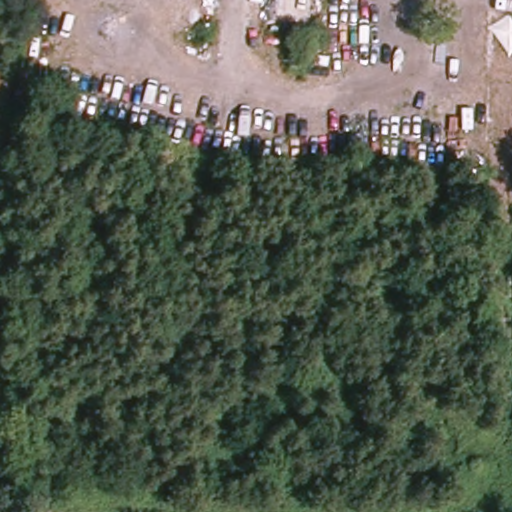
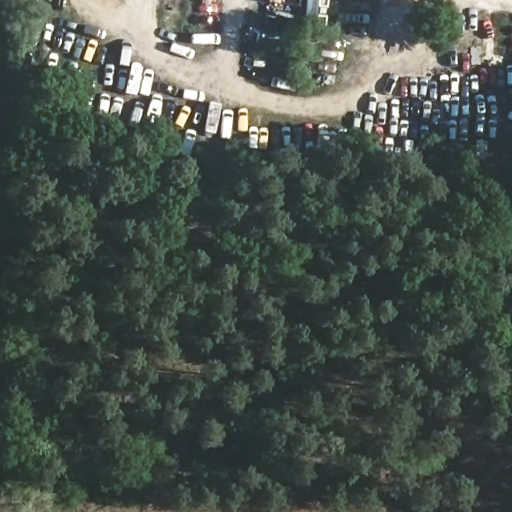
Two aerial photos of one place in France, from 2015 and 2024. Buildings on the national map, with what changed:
[]

